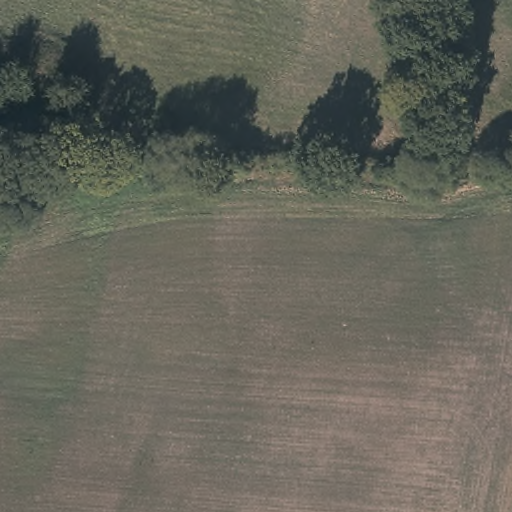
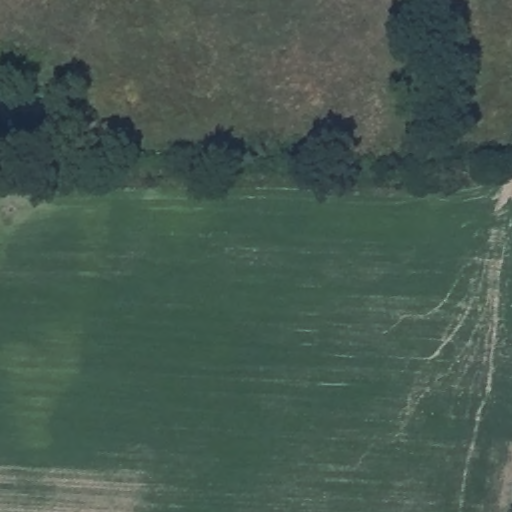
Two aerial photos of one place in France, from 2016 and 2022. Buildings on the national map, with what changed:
[]

